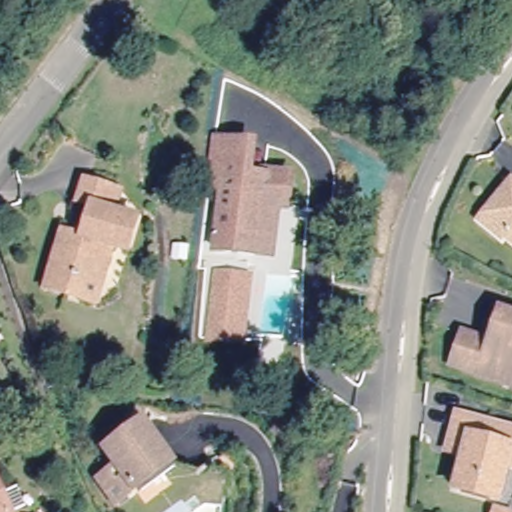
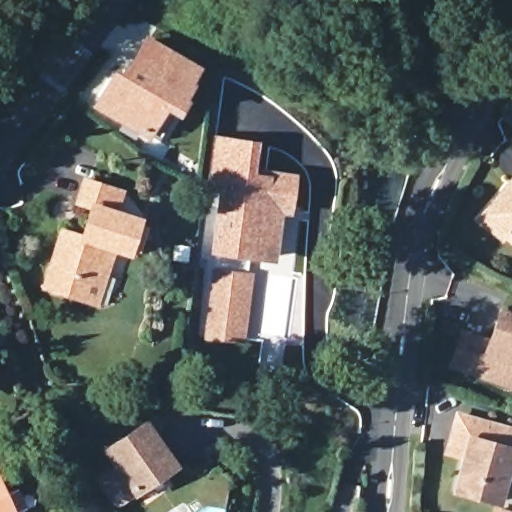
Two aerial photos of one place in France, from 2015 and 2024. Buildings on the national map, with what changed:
new [(202,66),(192,81),(194,83),(185,98),(188,99),(178,116),(165,109),(150,139),(93,107),(114,68),(120,72),(127,60),(130,62),(147,34),(202,66)]
unchanged [(254,250),(215,245),(220,206),(223,186),(230,137),(249,140),(245,171),(290,177),(287,201),(278,200),(274,236),(271,253),(254,250)]
unchanged [(115,208),(130,213),(139,215),(128,248),(120,245),(114,243),(96,300),(45,283),(63,226),(83,233),(93,202),(79,197),(86,176),(121,188),(115,208)]
unchanged [(503,234),(480,215),(511,176),(512,177),(512,233),(507,229),(503,234)]
unchanged [(247,275),(239,338),(208,334),(216,271),(247,275)]
unchanged [(447,367),(458,334),(475,340),(486,344),(496,313),(512,319),(512,389),(509,388),(447,367)]
unchanged [(493,501),(451,489),(460,457),(443,453),(448,434),(453,416),(512,433),(512,470),(503,467),(493,501)]
unchanged [(100,475),(118,463),(106,446),(145,418),(174,460),(116,499),(100,475)]
unchanged [(12,507),(11,507),(14,512),(0,512),(0,480),(12,507)]
unchanged [(491,512),(491,510),(496,512),(491,512)]

